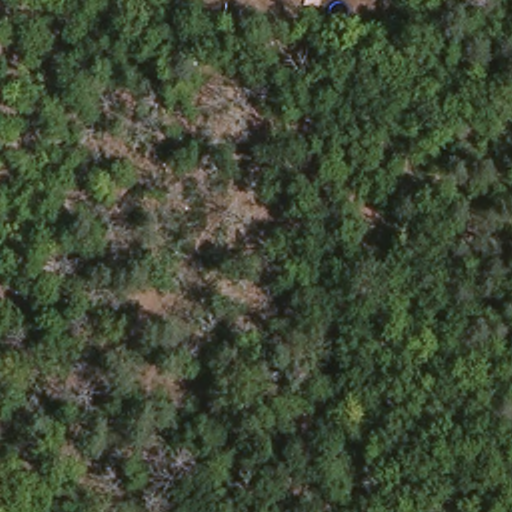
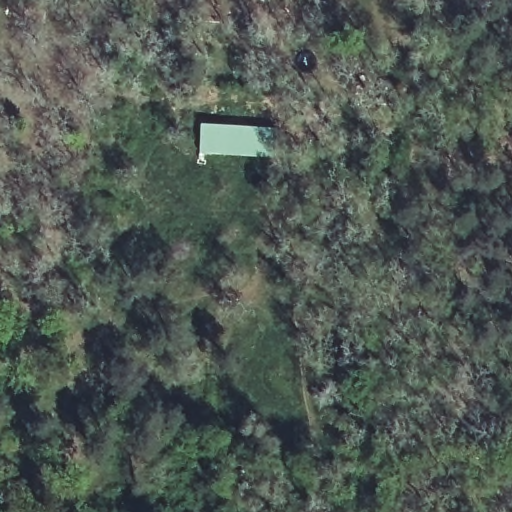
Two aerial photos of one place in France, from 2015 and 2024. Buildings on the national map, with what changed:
new [(203,125),(279,130),(277,158),(201,154),(203,125)]

